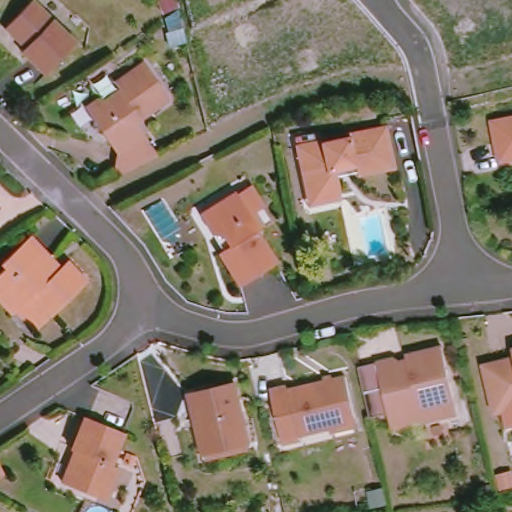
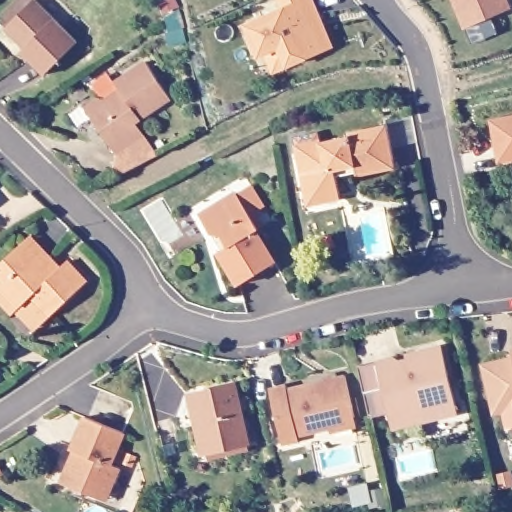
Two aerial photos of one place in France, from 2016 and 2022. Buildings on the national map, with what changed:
unchanged [(44,74),(20,51),(23,47),(4,28),(31,0),(33,0),(76,41),(44,74)]
new [(287,64),(280,46),(260,55),(246,24),(284,8),(280,0),(312,0),(332,45),(287,64)]
new [(454,0),(506,0),(510,8),(465,27),(454,0)]
new [(280,46),(287,64),(274,70),(265,52),(280,46)]
unchanged [(117,179),(110,166),(112,155),(83,105),(95,98),(99,103),(116,90),(110,81),(140,60),(170,103),(137,126),(155,158),(117,179)]
unchanged [(489,124),(512,119),(512,159),(496,161),(489,124)]
unchanged [(306,210),(304,198),(295,155),(294,149),(318,144),(319,146),(346,140),(345,136),(382,128),(392,171),(355,179),(354,175),(335,180),(338,196),(340,203),(306,210)]
unchanged [(257,229),(254,230),(273,262),(238,284),(219,252),(228,245),(221,234),(210,233),(199,215),(235,193),(257,229)]
unchanged [(12,313),(0,299),(0,271),(5,267),(2,264),(26,240),(45,260),(42,270),(47,275),(64,261),(84,282),(38,327),(32,333),(12,313)]
unchanged [(407,408),(394,412),(381,361),(397,357),(407,364),(412,362),(410,354),(447,345),(462,412),(427,420),(410,424),(407,408)]
unchanged [(487,403),(478,366),(499,359),(504,362),(510,361),(507,349),(512,348),(512,406),(497,409),(487,403)]
unchanged [(375,416),(362,365),(381,361),(394,412),(375,416)]
unchanged [(330,429),(329,424),(297,432),(298,436),(282,439),(269,385),(285,381),(287,388),(344,374),(353,413),(355,422),(330,429)]
unchanged [(200,447),(195,428),(192,424),(191,419),(192,413),(189,396),(227,386),(242,446),(222,451),(202,456),(200,447)]
unchanged [(98,498),(62,484),(72,462),(78,458),(80,453),(72,449),(85,416),(122,432),(110,464),(119,468),(112,486),(106,501),(98,498)]

